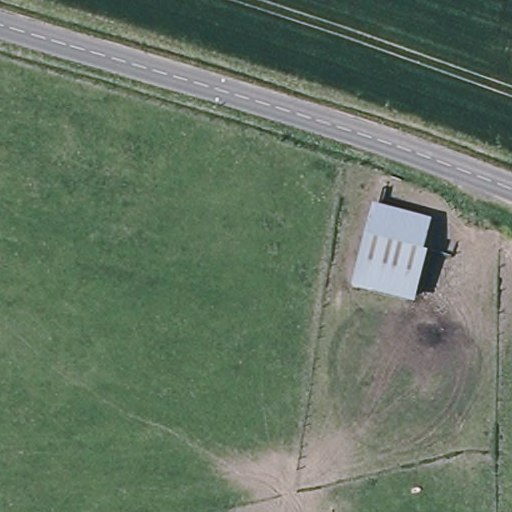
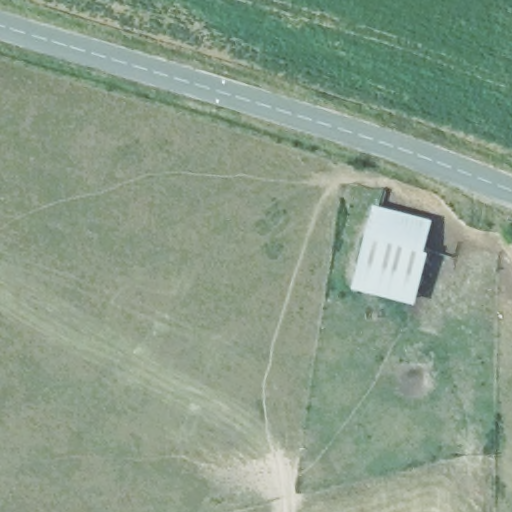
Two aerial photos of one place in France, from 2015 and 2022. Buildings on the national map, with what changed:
unchanged [(434,220),(415,300),(350,286),(373,203),(434,220)]

